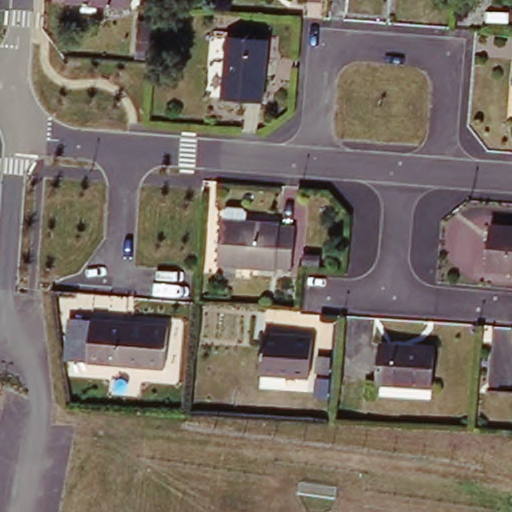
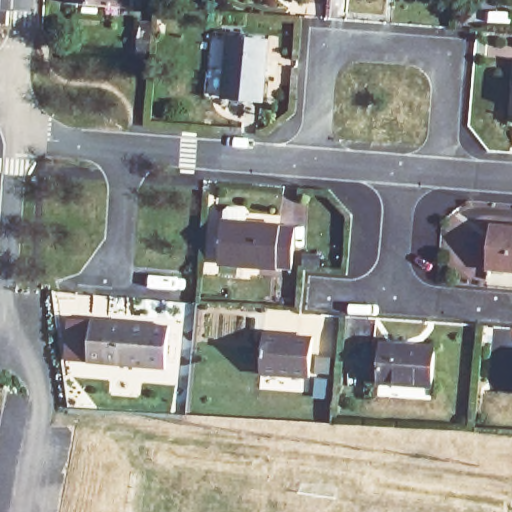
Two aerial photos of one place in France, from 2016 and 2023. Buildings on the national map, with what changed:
unchanged [(77,8),(77,0),(136,0),(135,12),(77,8)]
unchanged [(275,47),(271,102),(228,97),(232,44),(275,47)]
unchanged [(227,229),(227,219),(231,216),(246,217),(250,221),(249,231),(298,234),(295,276),(223,271),(225,229),(227,229)]
unchanged [(512,278),(495,277),(497,233),(512,234),(512,278)]
unchanged [(169,373),(91,367),(71,366),(75,325),(95,326),(172,330),(169,373)]
unchanged [(321,343),(317,384),(268,380),(270,340),(321,343)]
unchanged [(437,351),(437,390),(385,387),(386,348),(437,351)]
unchanged [(355,353),(353,372),(342,371),(341,354),(355,353)]

